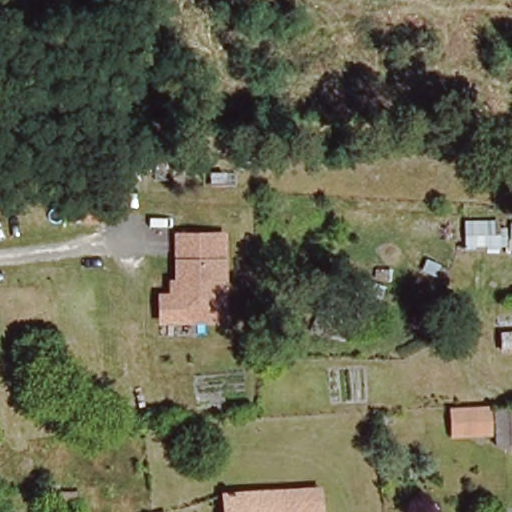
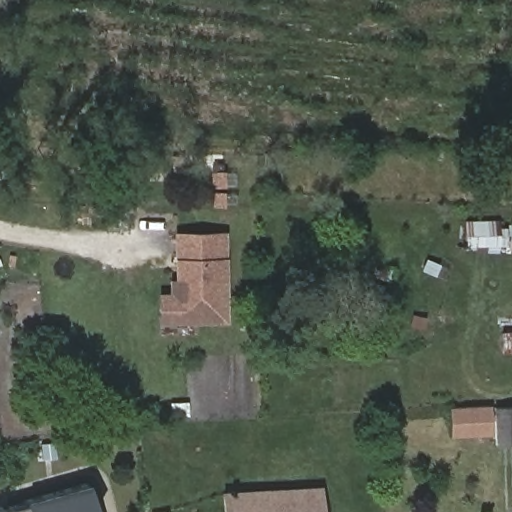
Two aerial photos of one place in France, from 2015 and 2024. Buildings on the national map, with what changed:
unchanged [(501,220),(501,227),(506,227),(506,247),(500,247),(500,253),(485,254),(485,249),(462,250),(463,221),(501,220)]
unchanged [(512,251),(508,251),(509,222),(512,222),(512,251)]
unchanged [(226,322),(159,324),(159,293),(166,293),(166,280),(175,279),(174,231),(225,230),(226,322)]
unchanged [(500,331),(512,330),(512,352),(500,352),(500,331)]
unchanged [(453,437),(452,408),(490,406),(490,437),(453,437)]
unchanged [(495,410),(512,408),(512,442),(498,443),(495,410)]
new [(89,483),(97,512),(0,512),(0,507),(89,483)]
unchanged [(220,494),(251,492),(317,487),(320,499),(320,512),(221,512),(220,494)]

